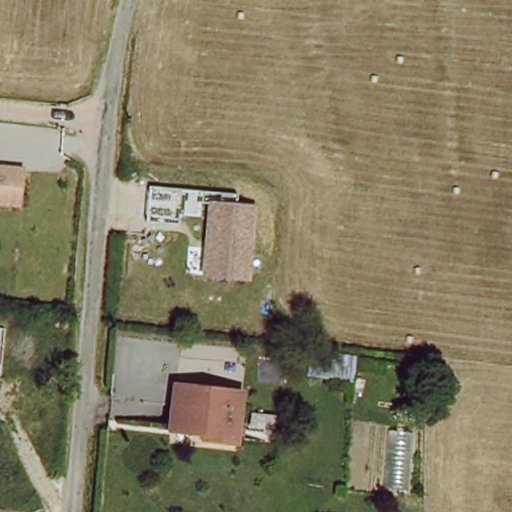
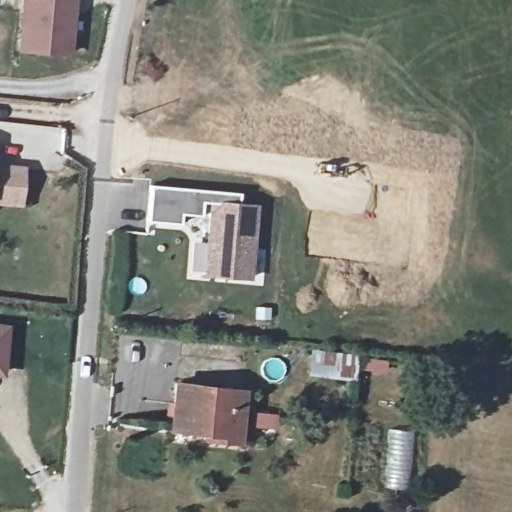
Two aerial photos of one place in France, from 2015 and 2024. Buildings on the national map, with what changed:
new [(70,57),(16,53),(21,0),(76,0),(70,57)]
unchanged [(0,168),(20,171),(17,207),(0,205),(0,168)]
new [(150,186),(238,194),(238,205),(211,203),(211,204),(201,203),(201,216),(181,215),(180,225),(147,222),(150,186)]
unchanged [(211,204),(211,203),(238,205),(255,206),(248,279),(205,275),(211,204)]
new [(0,328),(6,329),(2,366),(1,374),(0,374),(0,328)]
unchanged [(356,357),(354,378),(334,376),(336,355),(356,357)]
unchanged [(244,390),(238,440),(221,439),(221,433),(171,427),(176,383),(244,390)]

